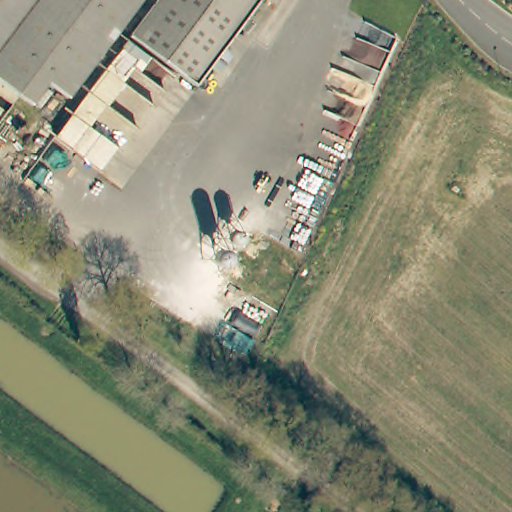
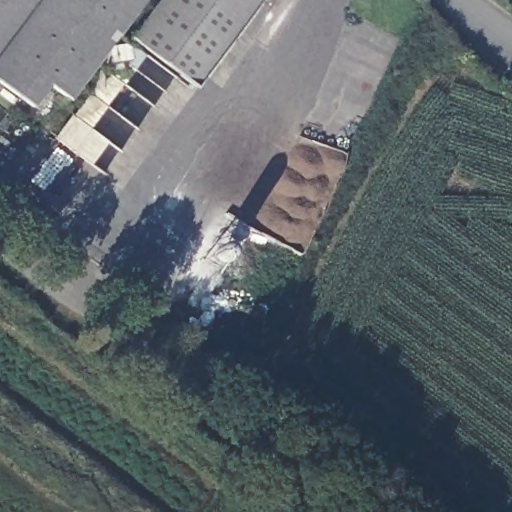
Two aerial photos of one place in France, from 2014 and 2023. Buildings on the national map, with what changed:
unchanged [(64,102),(42,87),(26,109),(16,101),(0,89),(0,0),(137,0),(64,102)]
unchanged [(126,39),(153,0),(255,0),(194,87),(126,39)]
unchanged [(51,142),(123,42),(172,76),(100,177),(51,142)]

